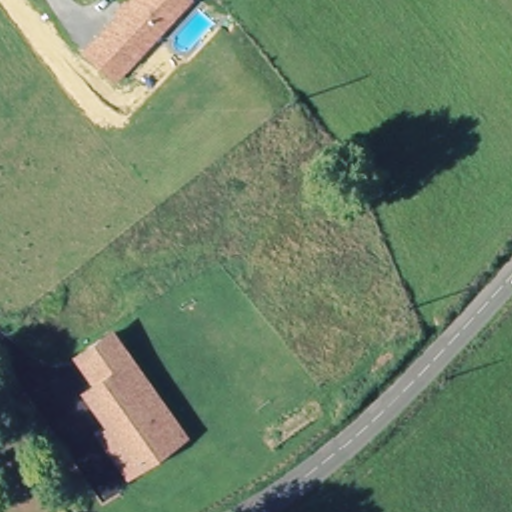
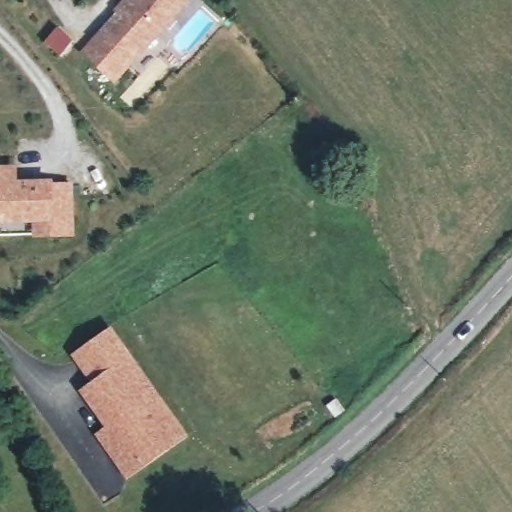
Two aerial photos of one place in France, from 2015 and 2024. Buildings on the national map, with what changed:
unchanged [(95,38),(131,0),(188,0),(160,30),(137,54),(114,79),(84,51),(95,38)]
new [(18,179),(54,177),(54,183),(75,183),(75,236),(32,237),(32,222),(0,223),(0,165),(17,164),(18,179)]
unchanged [(88,393),(99,384),(77,359),(108,334),(137,369),(169,407),(189,430),(139,472),(119,448),(109,435),(117,428),(88,393)]

